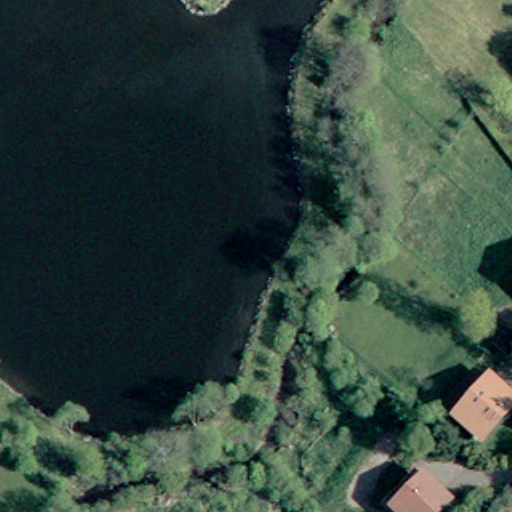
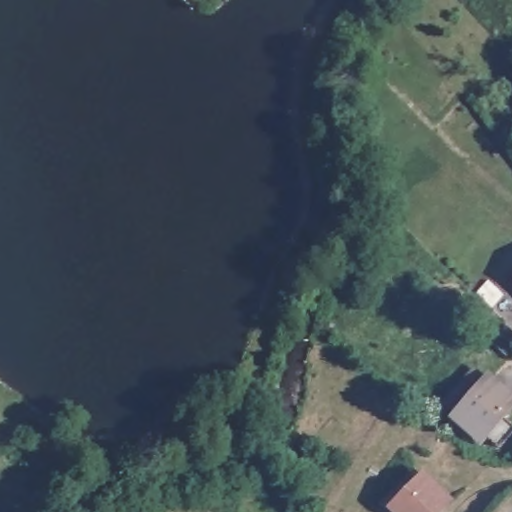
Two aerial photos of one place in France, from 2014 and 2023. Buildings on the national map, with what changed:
unchanged [(461,418),(447,405),(477,369),(492,382),(512,399),(512,404),(484,438),(461,418)]
unchanged [(421,512),(395,512),(389,506),(417,475),(438,494),(421,512)]

